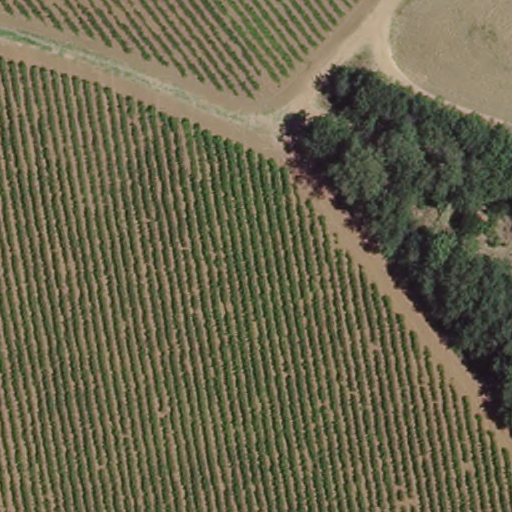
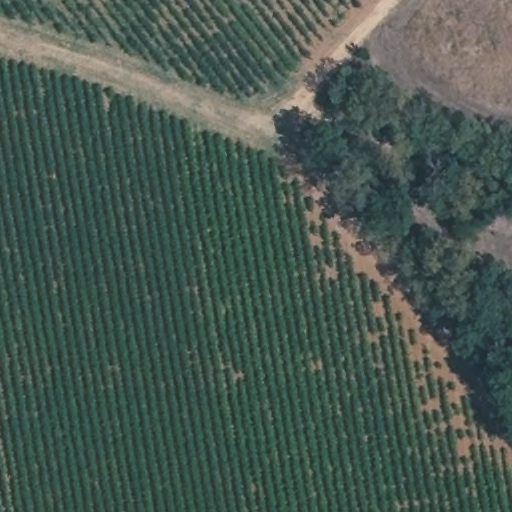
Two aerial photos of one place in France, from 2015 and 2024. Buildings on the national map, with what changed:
unchanged [(476,227),(493,231),(486,256),(470,251),(476,227)]

